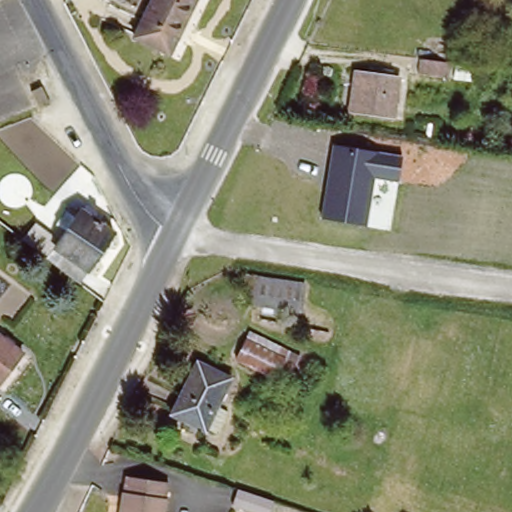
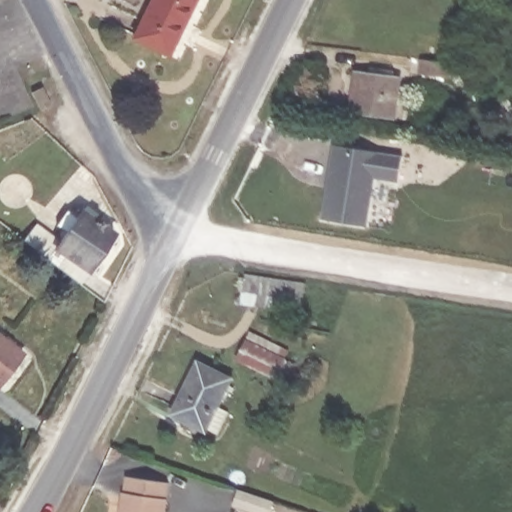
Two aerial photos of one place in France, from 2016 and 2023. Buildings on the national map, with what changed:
unchanged [(135,36),(153,0),(203,0),(192,22),(176,55),(167,51),(135,36)]
unchanged [(417,59),(449,63),(447,76),(415,72),(417,59)]
unchanged [(347,110),(352,69),(394,74),(389,115),(347,110)]
unchanged [(50,112),(38,88),(50,84),(61,107),(50,112)]
unchanged [(332,144),(405,155),(401,182),(373,177),(366,227),(320,217),(332,144)]
unchanged [(26,238),(36,222),(60,241),(67,230),(56,222),(67,206),(77,215),(86,202),(100,212),(96,217),(115,232),(82,282),(26,238)]
unchanged [(303,306),(242,297),(245,275),(306,284),(303,306)]
unchanged [(0,383),(0,331),(25,350),(0,383)]
unchanged [(297,359),(288,377),(241,353),(250,335),(297,359)]
unchanged [(171,410),(196,358),(230,375),(216,403),(227,408),(216,432),(208,428),(193,431),(181,425),(185,417),(171,410)]
unchanged [(170,482),(166,512),(124,512),(130,476),(170,482)]
unchanged [(272,512),(250,512),(234,507),(240,490),(275,502),(272,512)]

